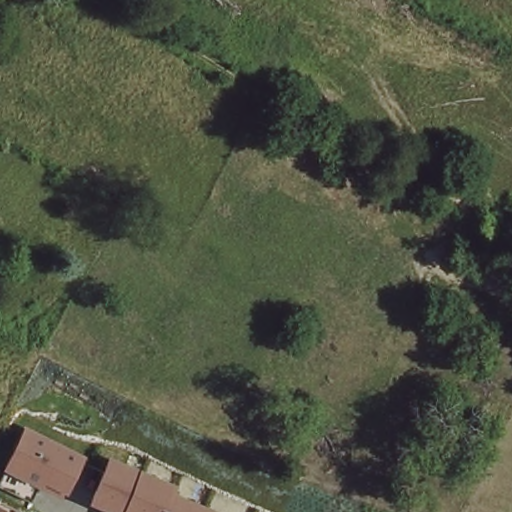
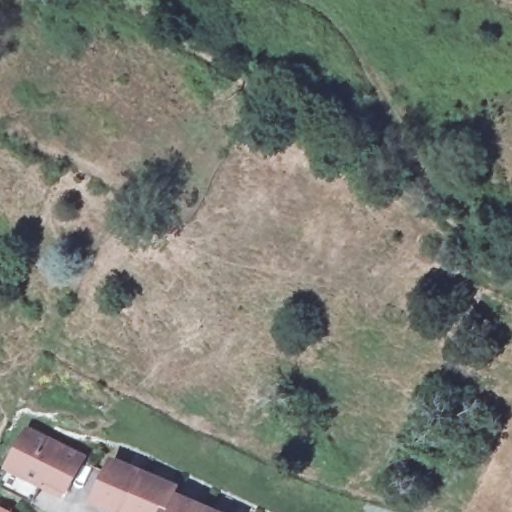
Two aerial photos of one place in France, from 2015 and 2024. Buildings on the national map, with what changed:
unchanged [(70,496),(66,495),(64,501),(40,490),(34,503),(1,488),(8,473),(5,471),(27,425),(90,455),(70,496)]
unchanged [(92,505),(113,457),(182,487),(179,494),(221,512),(106,512),(92,505)]
unchanged [(0,508),(8,512),(0,512),(0,508)]

